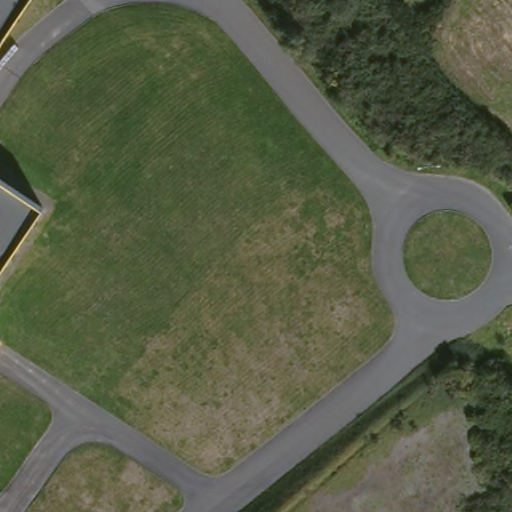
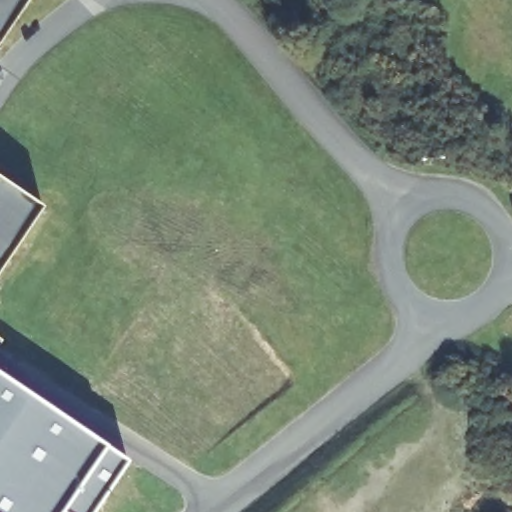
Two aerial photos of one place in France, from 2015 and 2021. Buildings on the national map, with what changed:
unchanged [(0,0),(29,0),(0,40),(0,0)]
unchanged [(0,269),(0,181),(40,210),(0,269)]
new [(127,465),(96,512),(0,512),(0,380),(106,451),(127,465)]

